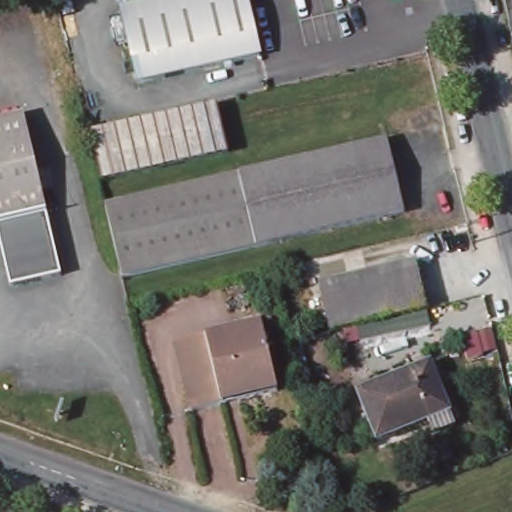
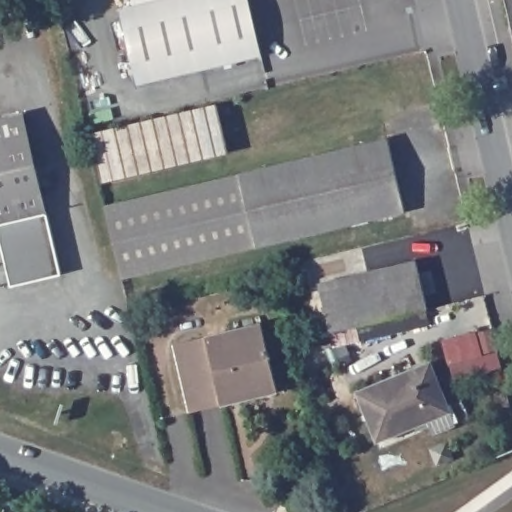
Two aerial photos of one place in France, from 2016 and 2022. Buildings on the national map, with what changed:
unchanged [(131,12),(182,0),(248,0),(262,60),(137,90),(120,15),(131,12)]
unchanged [(131,12),(128,0),(182,0),(131,12)]
unchanged [(217,106),(227,152),(102,181),(91,135),(217,106)]
unchanged [(41,215),(0,224),(0,118),(17,114),(41,215)]
unchanged [(383,139),(400,211),(117,279),(100,207),(383,139)]
unchanged [(0,224),(41,215),(56,278),(9,289),(0,254),(0,224)]
unchanged [(417,262),(427,309),(330,332),(318,284),(417,262)]
unchanged [(261,330),(277,395),(189,416),(172,350),(261,330)]
unchanged [(426,368),(447,416),(373,446),(352,397),(426,368)]

